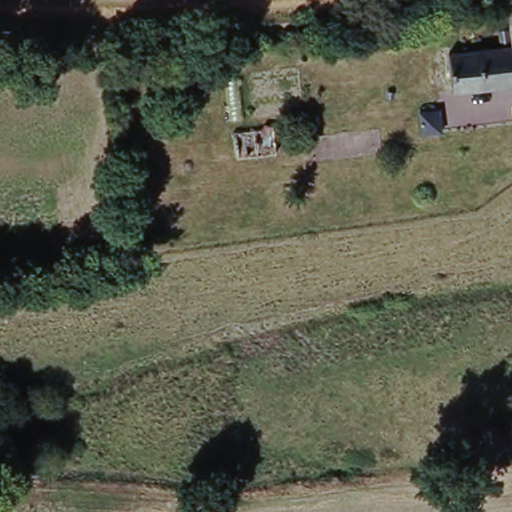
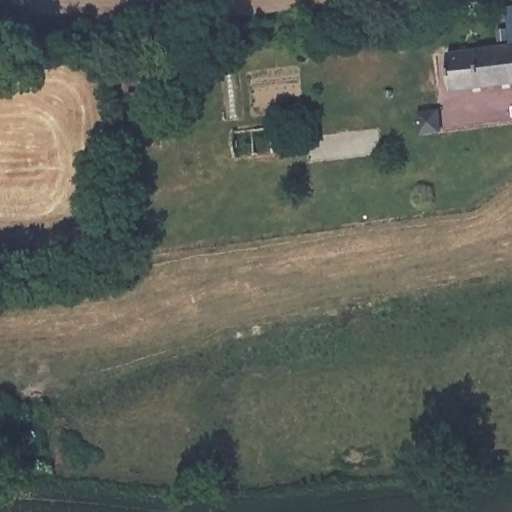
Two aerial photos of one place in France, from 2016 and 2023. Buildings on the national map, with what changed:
unchanged [(512,15),(512,27),(511,16),(512,15)]
unchanged [(461,100),(456,64),(512,56),(512,93),(461,100)]
unchanged [(281,159),(226,165),(224,139),(279,132),(281,159)]

